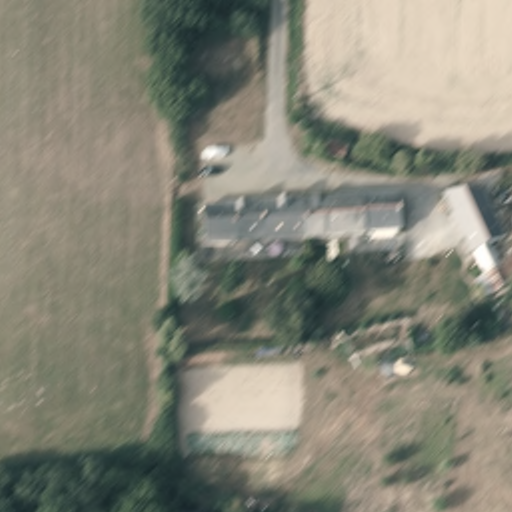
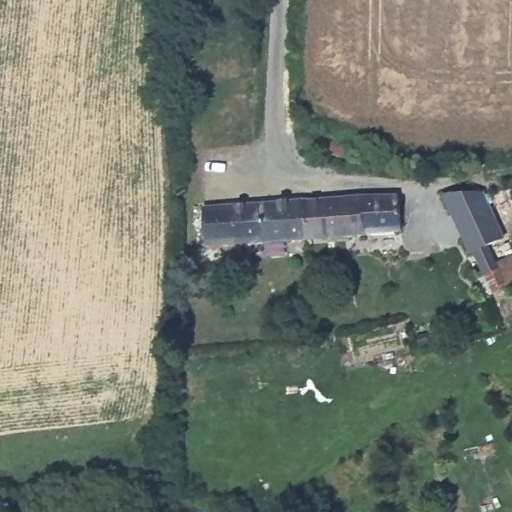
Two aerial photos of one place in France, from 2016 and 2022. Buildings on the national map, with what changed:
unchanged [(306,145),(313,126),(353,136),(347,157),(306,145)]
demolished [(494,269),(483,274),(474,249),(470,251),(450,190),(466,187),(494,269)]
unchanged [(260,205),(305,201),(329,198),(401,192),(402,228),(333,233),(311,234),(258,238),(260,205)]
new [(488,246),(472,253),(468,255),(440,194),(483,192),(503,240),(488,246)]
unchanged [(258,238),(205,242),(204,210),(260,205),(258,238)]
new [(483,274),(494,269),(482,274),(472,253),(488,246),(495,261),(512,254),(512,284),(501,289),(480,298),(473,278),(483,274)]

